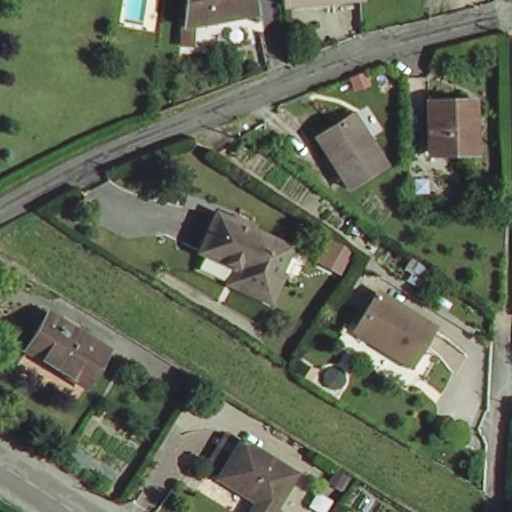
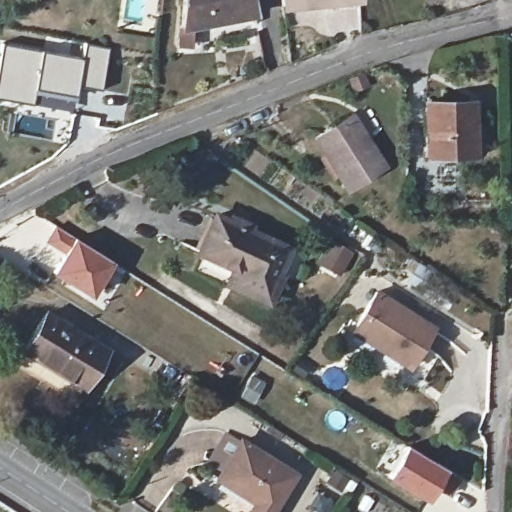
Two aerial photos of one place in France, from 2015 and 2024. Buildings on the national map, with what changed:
unchanged [(261,15),(188,29),(189,0),(256,0),(261,15)]
unchanged [(288,3),(287,0),(327,0),(288,3)]
new [(84,43),(108,48),(101,88),(78,84),(72,106),(35,96),(33,103),(0,98),(0,42),(82,56),(84,43)]
unchanged [(475,101),(476,151),(430,151),(429,102),(475,101)]
unchanged [(354,115),(386,166),(352,188),(319,138),(354,115)]
unchanged [(281,249),(260,297),(227,282),(233,271),(194,252),(209,214),(281,249)]
new [(54,224),(113,261),(90,297),(51,272),(62,255),(42,242),(54,224)]
unchanged [(349,251),(336,272),(316,259),(329,238),(349,251)]
unchanged [(436,323),(413,363),(356,327),(379,288),(436,323)]
unchanged [(111,348),(87,386),(27,349),(50,311),(111,348)]
unchanged [(217,476),(240,439),(292,473),(269,510),(268,512),(246,512),(254,500),(217,476)]

